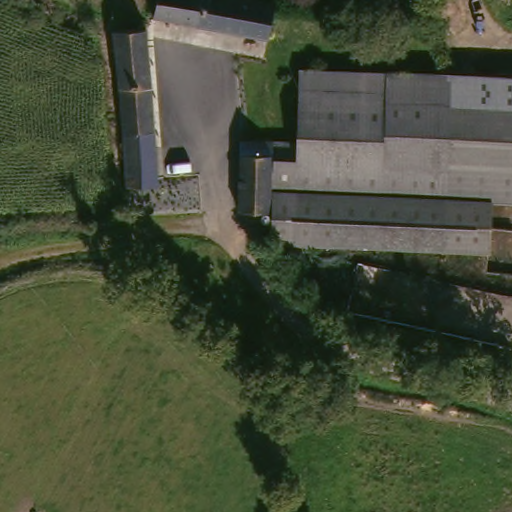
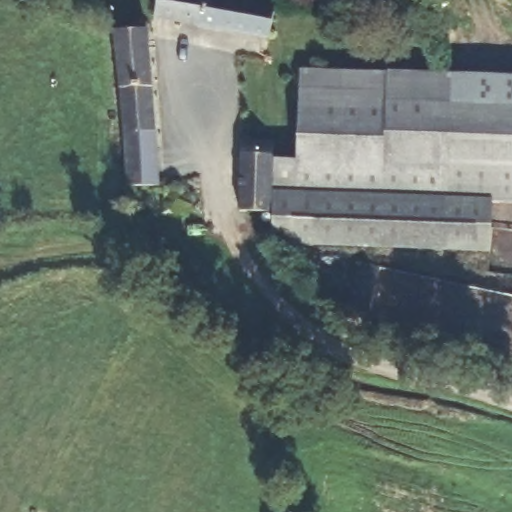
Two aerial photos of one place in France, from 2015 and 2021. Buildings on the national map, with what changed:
unchanged [(281,0),(280,3),(274,34),(160,12),(163,0),(281,0)]
unchanged [(125,31),(160,29),(167,182),(131,184),(125,31)]
unchanged [(499,195),(497,251),(278,241),(278,203),(248,202),(249,135),(300,138),(306,65),(512,70),(512,196),(499,195)]

